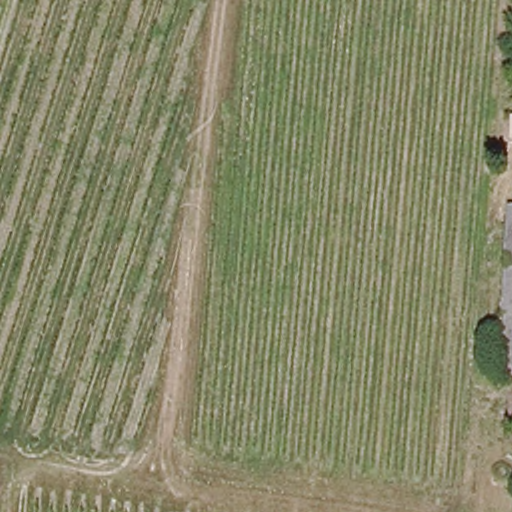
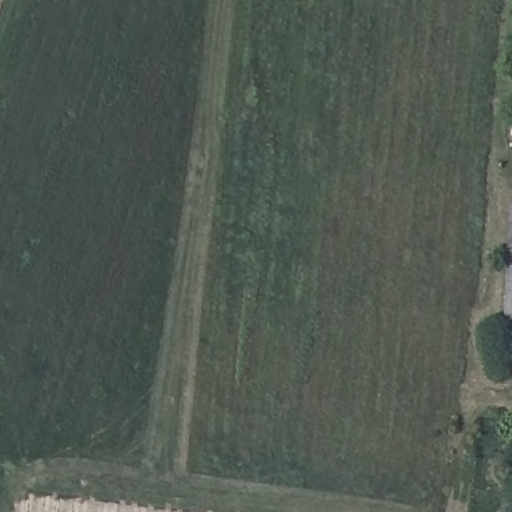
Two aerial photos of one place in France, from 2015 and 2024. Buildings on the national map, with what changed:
unchanged [(502,340),(510,203),(512,203),(512,365),(501,365),(502,340)]

